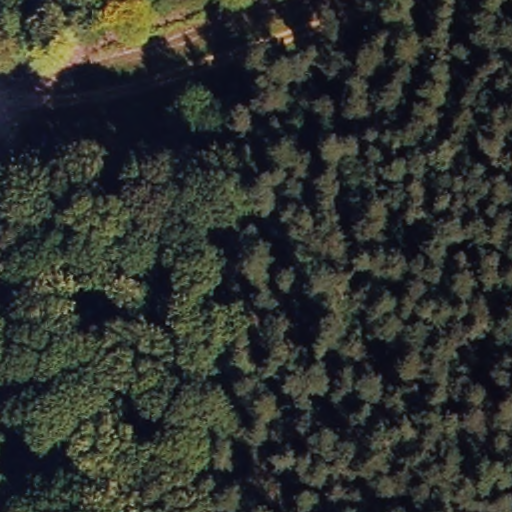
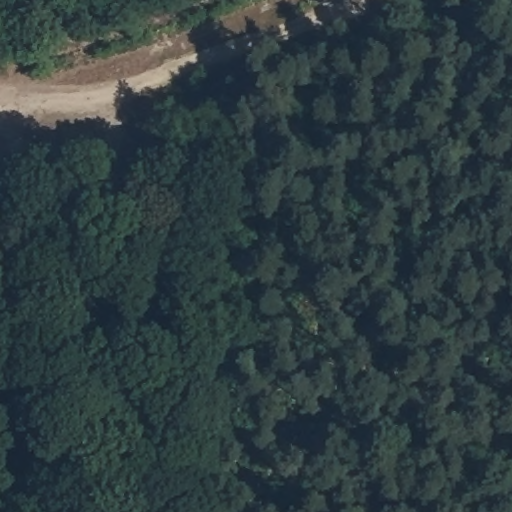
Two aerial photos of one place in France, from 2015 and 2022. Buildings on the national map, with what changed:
unchanged [(60,171),(27,169),(29,137),(56,138),(60,171)]

